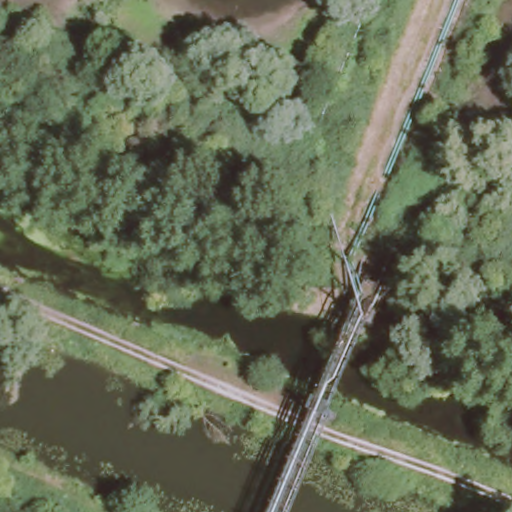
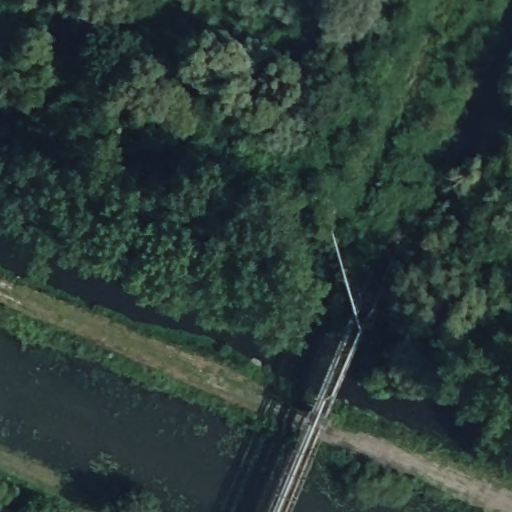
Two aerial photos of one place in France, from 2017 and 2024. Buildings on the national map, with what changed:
[]

